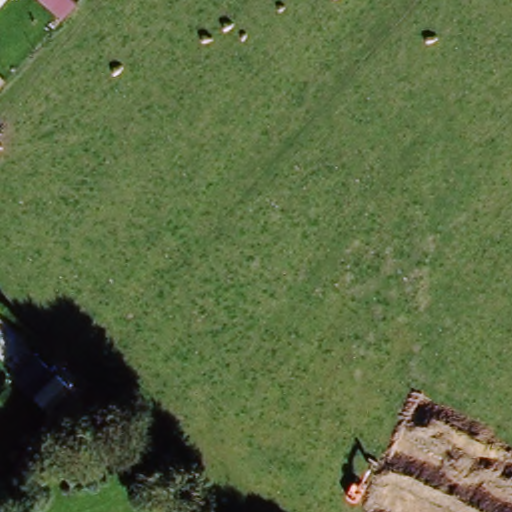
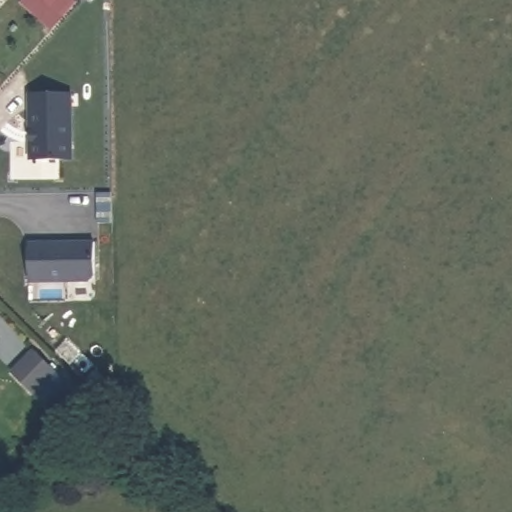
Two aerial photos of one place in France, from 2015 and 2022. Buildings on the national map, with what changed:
new [(72,3),(59,18),(39,0),(69,0),(72,3)]
new [(74,160),(29,160),(27,93),(72,93),(74,160)]
new [(92,242),(93,276),(86,281),(26,283),(25,243),(92,242)]

